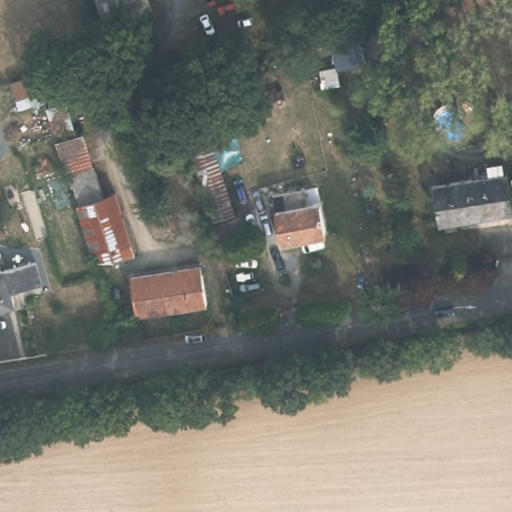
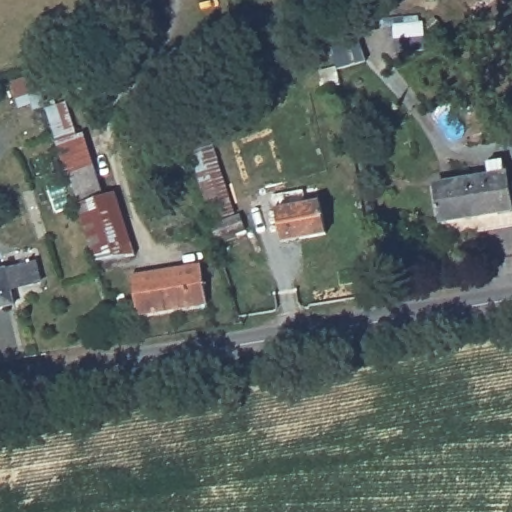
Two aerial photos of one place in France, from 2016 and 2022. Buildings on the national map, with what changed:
unchanged [(161,20),(110,29),(100,0),(154,0),(161,20)]
unchanged [(77,136),(97,199),(82,205),(59,141),(77,136)]
unchanged [(503,172),(507,208),(441,218),(436,182),(503,172)]
unchanged [(332,232),(316,235),(317,248),(296,251),(294,238),(278,241),(272,200),(326,191),(332,232)]
unchanged [(82,205),(97,199),(109,196),(129,253),(103,265),(82,205)]
unchanged [(201,302),(138,311),(132,272),(196,264),(201,302)]
unchanged [(0,317),(0,272),(18,269),(38,266),(43,294),(23,297),(9,299),(11,315),(0,317)]

